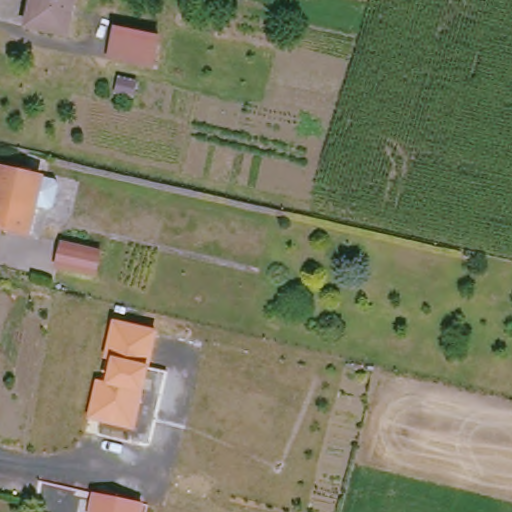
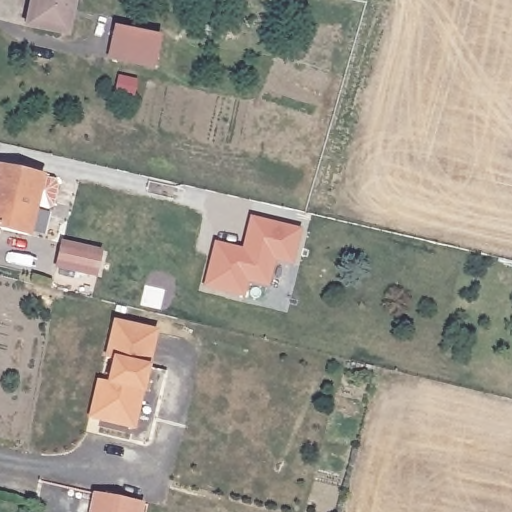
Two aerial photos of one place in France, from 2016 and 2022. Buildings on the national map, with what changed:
unchanged [(32,0),(74,0),(66,35),(31,27),(26,26),(31,3),(32,0)]
unchanged [(153,67),(108,58),(115,27),(159,36),(153,67)]
unchanged [(54,181),(58,186),(53,206),(48,210),(34,207),(28,235),(0,228),(0,168),(41,178),(54,181)]
new [(301,229),(293,263),(276,259),(269,287),(248,282),(243,296),(204,287),(215,242),(243,248),(250,217),(301,229)]
unchanged [(95,276),(56,267),(62,243),(101,252),(95,276)]
unchanged [(98,381),(108,383),(113,361),(106,359),(115,322),(158,333),(134,429),(99,420),(90,418),(98,381)]
unchanged [(143,506),(142,512),(87,512),(91,492),(143,506)]

